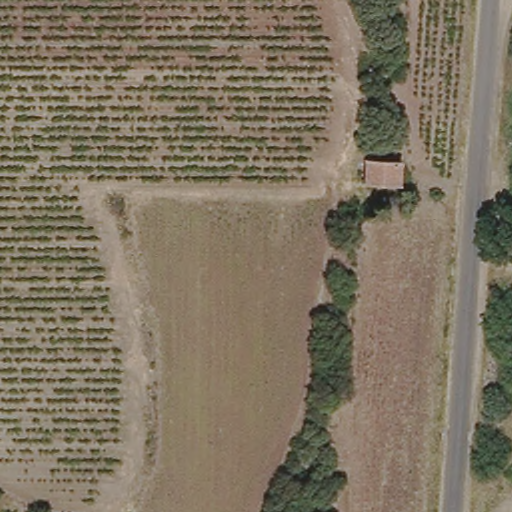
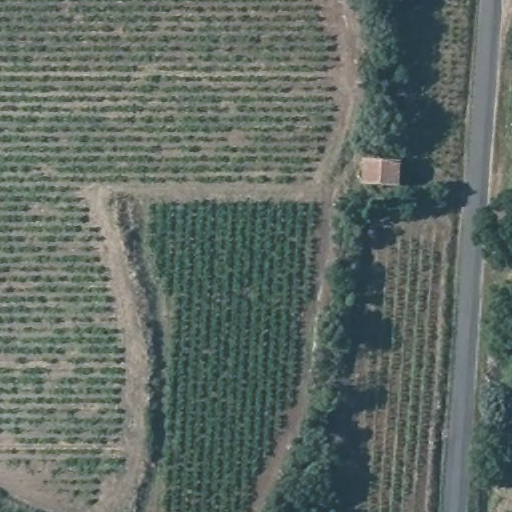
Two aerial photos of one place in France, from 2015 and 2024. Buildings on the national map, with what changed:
unchanged [(366,184),(367,159),(401,159),(402,184),(366,184)]

